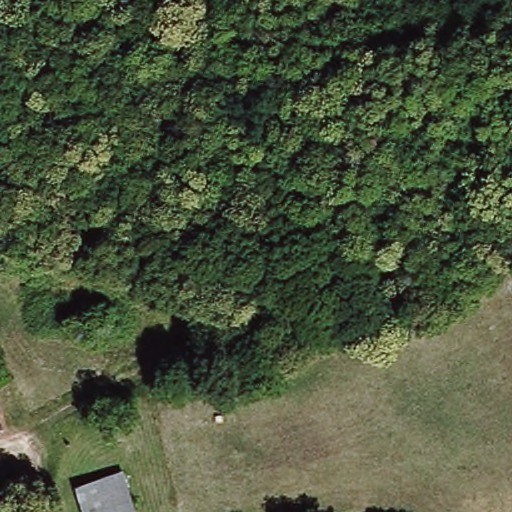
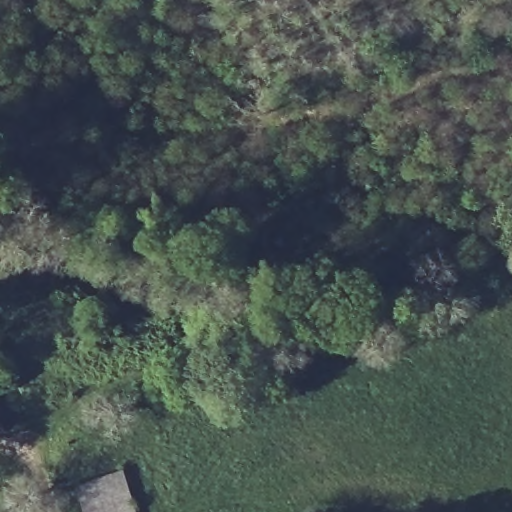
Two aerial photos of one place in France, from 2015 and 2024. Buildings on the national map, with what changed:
unchanged [(0,427),(0,421),(2,425),(0,427)]
unchanged [(75,487),(122,471),(135,512),(83,512),(75,487)]

